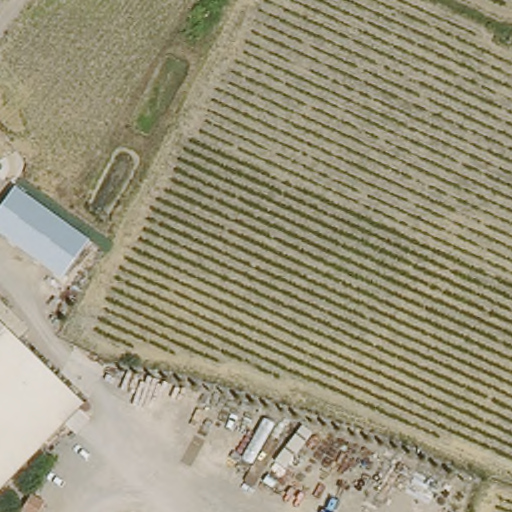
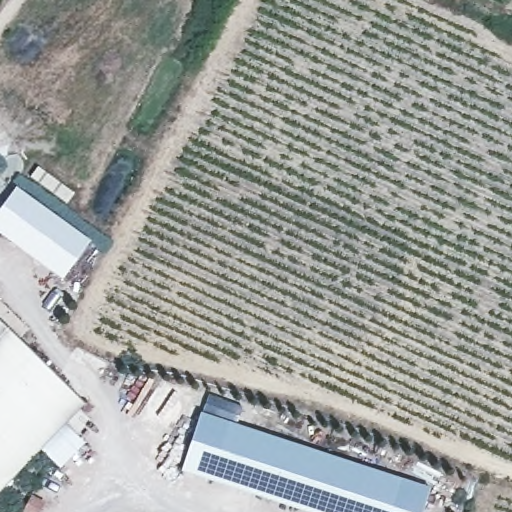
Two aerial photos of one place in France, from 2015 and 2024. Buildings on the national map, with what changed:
unchanged [(90,241),(61,282),(0,237),(0,210),(16,187),(90,241)]
unchanged [(34,356),(0,391),(0,324),(34,356)]
unchanged [(78,397),(36,442),(43,448),(0,494),(0,391),(34,356),(78,397)]
new [(200,413),(431,489),(423,512),(305,512),(182,472),(200,413)]

